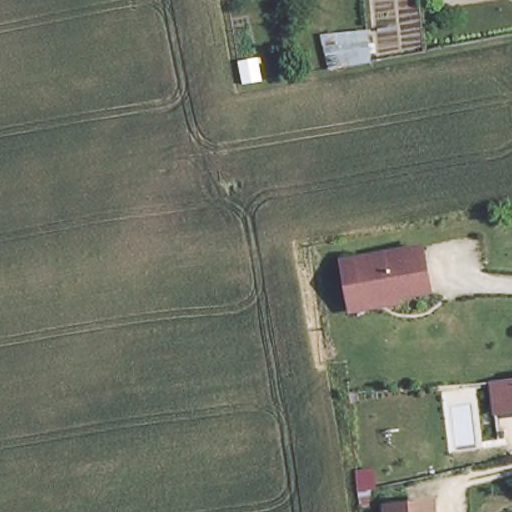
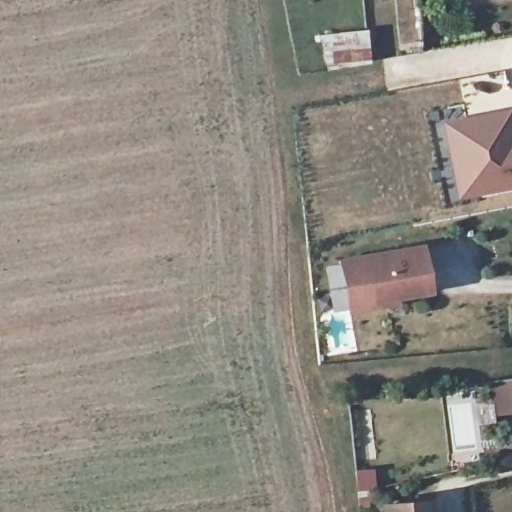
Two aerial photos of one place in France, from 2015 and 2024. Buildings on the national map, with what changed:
unchanged [(369,64),(324,68),(322,33),(366,30),(369,64)]
new [(459,203),(444,125),(512,112),(512,193),(459,203)]
unchanged [(351,313),(342,263),(354,261),(422,248),(430,292),(396,299),(397,304),(351,313)]
unchanged [(491,374),(512,371),(512,406),(497,408),(491,374)]
unchanged [(388,502),(436,500),(437,512),(388,512),(388,502)]

